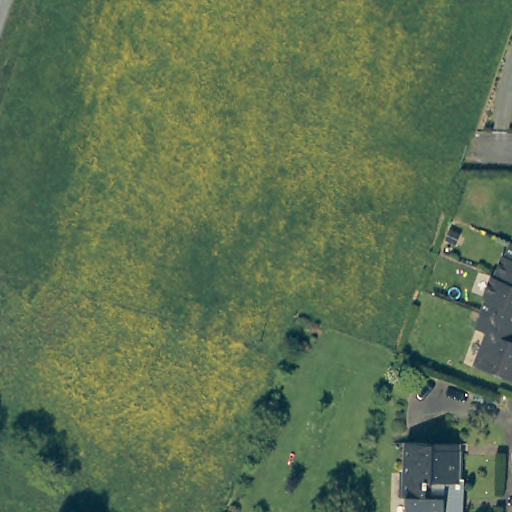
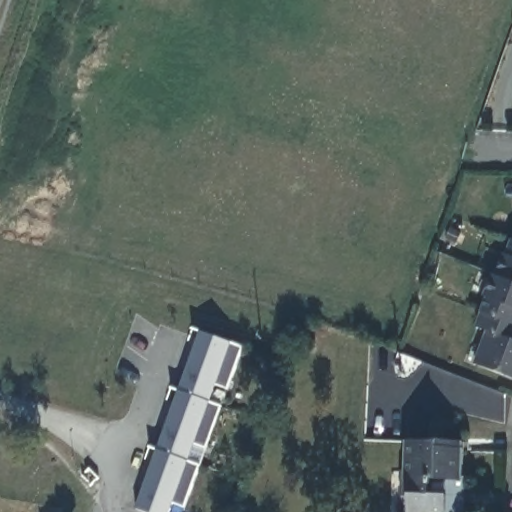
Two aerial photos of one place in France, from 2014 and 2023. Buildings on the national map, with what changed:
unchanged [(510,341),(512,342),(512,380),(475,365),(488,332),(477,328),(489,300),(486,299),(495,277),(497,278),(506,255),(510,256),(512,250),(512,337),(510,341)]
new [(200,330),(244,346),(229,388),(216,384),(210,402),(221,407),(207,447),(195,443),(190,461),(200,465),(185,506),(173,502),(170,512),(143,512),(135,509),(200,330)]
unchanged [(440,438),(460,439),(459,447),(461,447),(460,476),(462,477),(461,489),(458,489),(457,512),(408,512),(408,495),(401,495),(402,471),(407,471),(408,440),(440,442),(440,438)]

